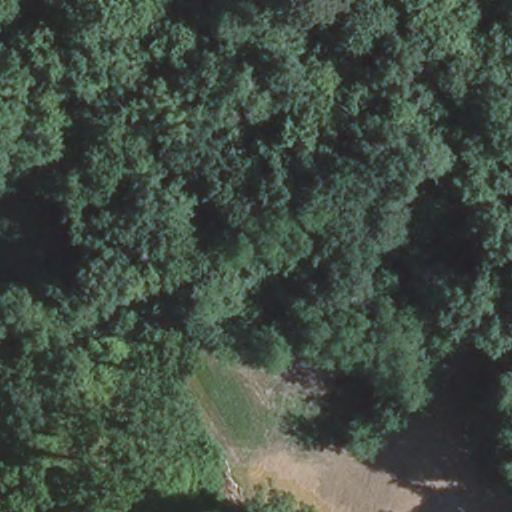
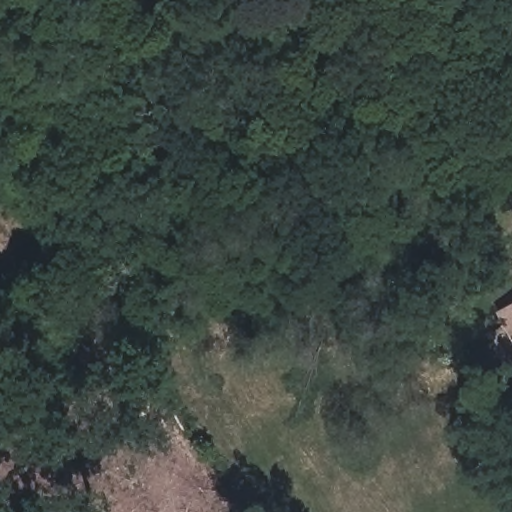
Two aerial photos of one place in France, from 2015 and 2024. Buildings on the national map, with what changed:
new [(498,312),(512,305),(512,338),(498,312)]

